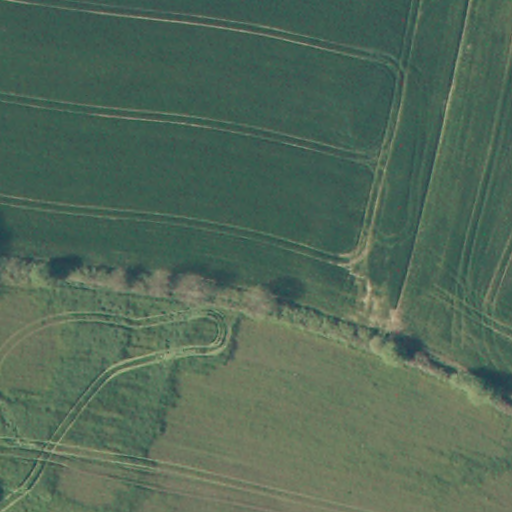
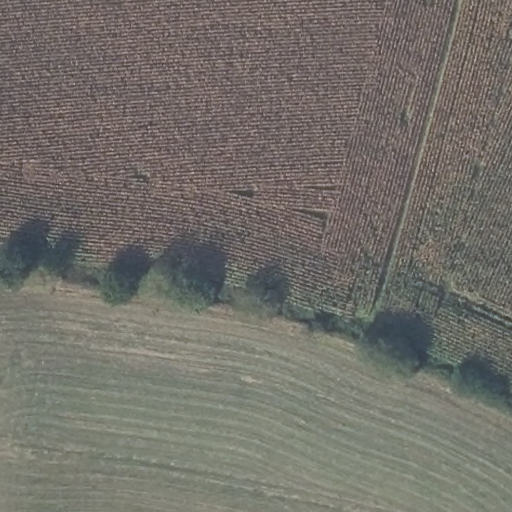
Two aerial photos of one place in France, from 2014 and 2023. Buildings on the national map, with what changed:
[]

